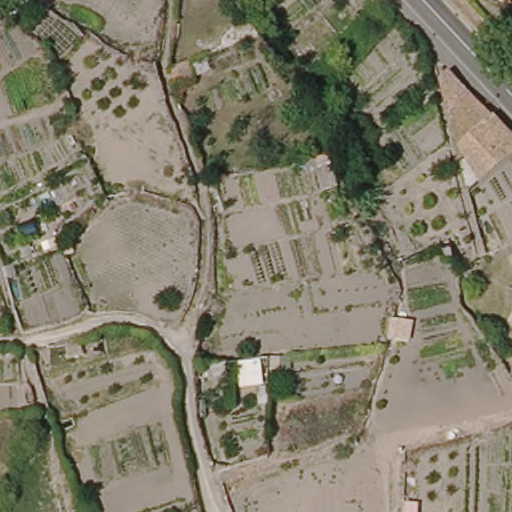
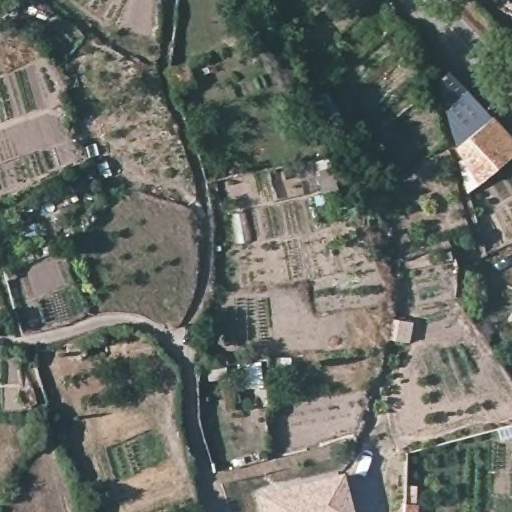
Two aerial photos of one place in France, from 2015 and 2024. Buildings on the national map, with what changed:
unchanged [(502,0),(504,0),(503,1),(502,0)]
unchanged [(167,85),(168,72),(186,65),(193,84),(171,94),(167,85)]
unchanged [(473,152),(453,85),(465,75),(507,120),(473,152)]
unchanged [(473,152),(507,120),(512,126),(512,173),(497,188),(473,152)]
new [(260,497),(340,477),(348,510),(349,512),(264,512),(260,497)]

